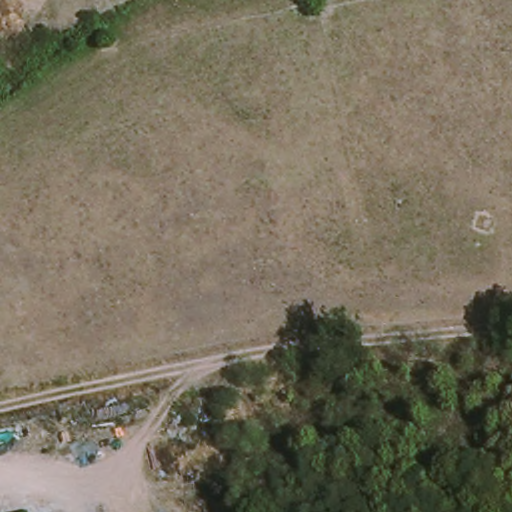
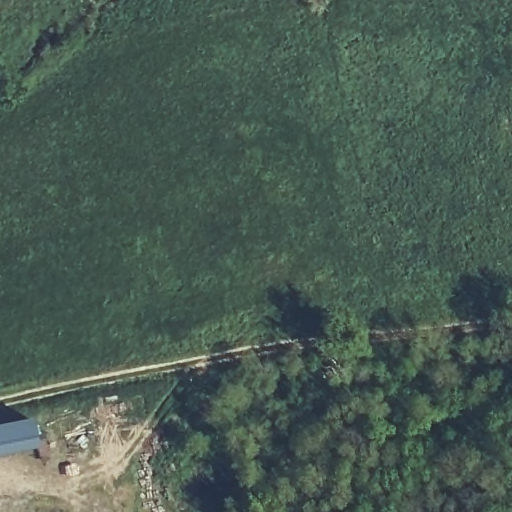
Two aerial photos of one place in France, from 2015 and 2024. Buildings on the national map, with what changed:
new [(37,447),(0,454),(0,426),(32,419),(37,447)]

